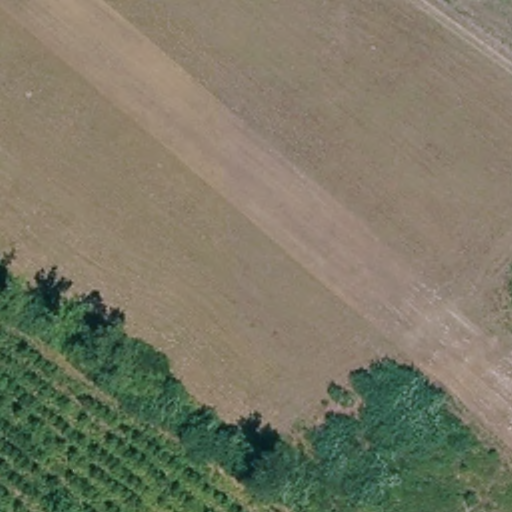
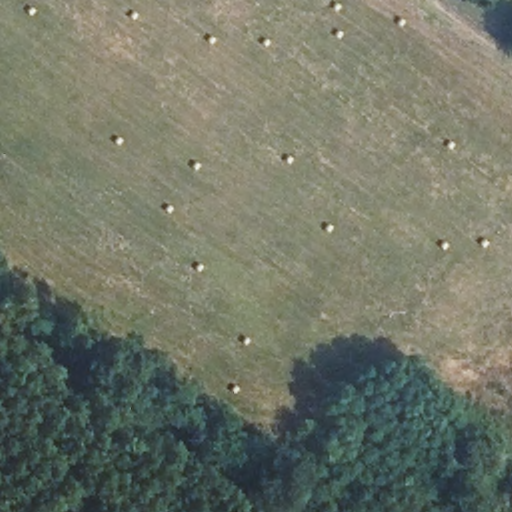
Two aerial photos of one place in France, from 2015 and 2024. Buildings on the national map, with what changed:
[]

